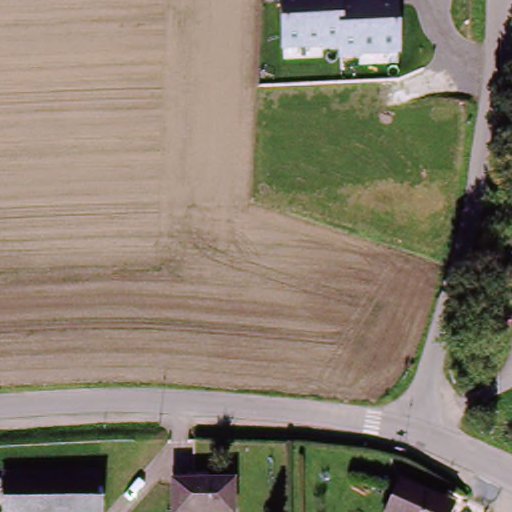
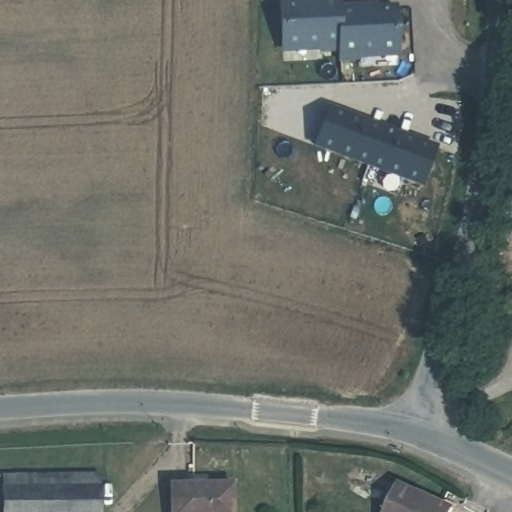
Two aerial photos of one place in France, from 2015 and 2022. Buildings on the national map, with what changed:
unchanged [(279,1),(291,0),(348,0),(349,7),(398,4),(400,57),(338,60),(337,51),(281,54),(279,1)]
new [(438,147),(422,189),(314,145),(328,105),(438,147)]
unchanged [(512,189),(512,233),(499,230),(504,214),(512,189)]
unchanged [(3,512),(3,478),(99,477),(100,512),(3,512)]
unchanged [(233,482),(232,512),(171,512),(171,482),(233,482)]
unchanged [(450,512),(386,512),(398,486),(451,509),(450,512)]

